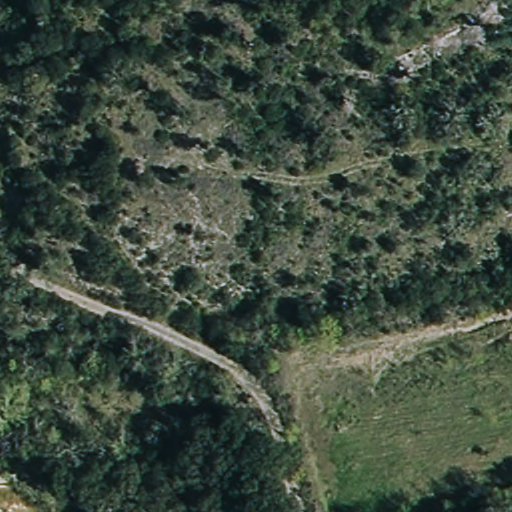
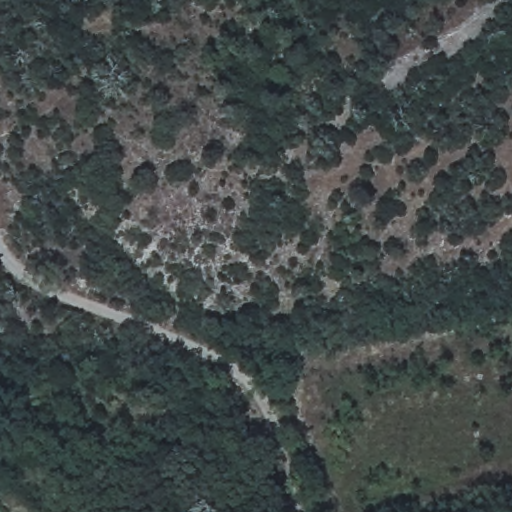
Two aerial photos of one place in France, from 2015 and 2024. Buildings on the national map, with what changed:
[]

